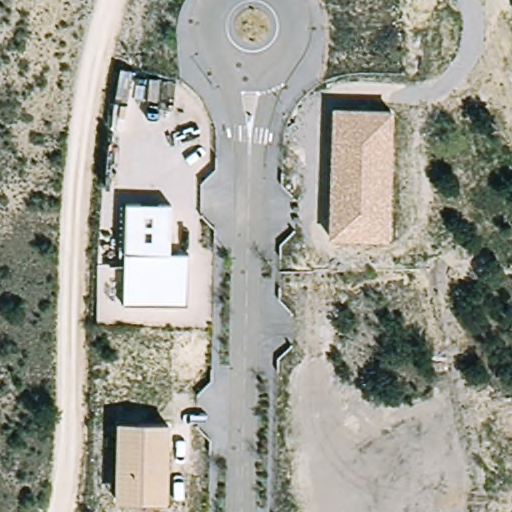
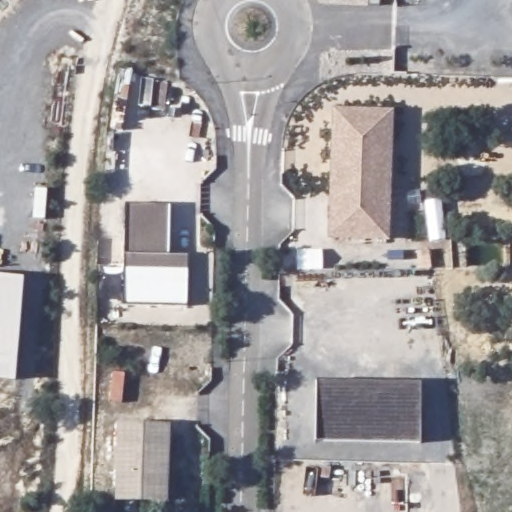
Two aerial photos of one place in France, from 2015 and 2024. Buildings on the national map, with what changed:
unchanged [(327,238),(330,110),(388,112),(384,240),(327,238)]
unchanged [(175,204),(173,253),(192,254),(192,306),(127,305),(129,203),(175,204)]
new [(0,276),(23,278),(14,381),(0,380),(0,276)]
new [(420,443),(315,441),(315,382),(420,383),(420,443)]
unchanged [(120,475),(122,424),(172,425),(171,477),(120,475)]
unchanged [(170,500),(120,499),(120,475),(171,477),(170,500)]

